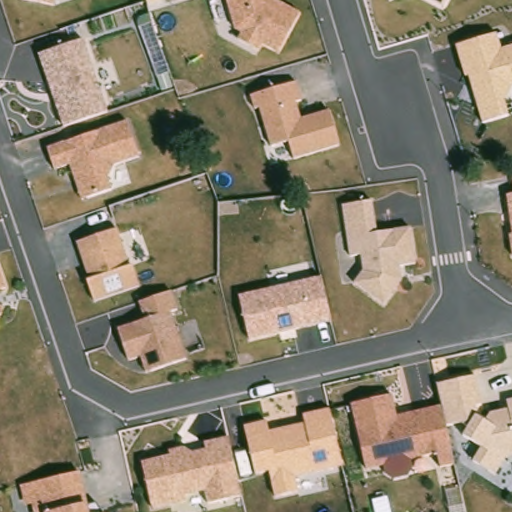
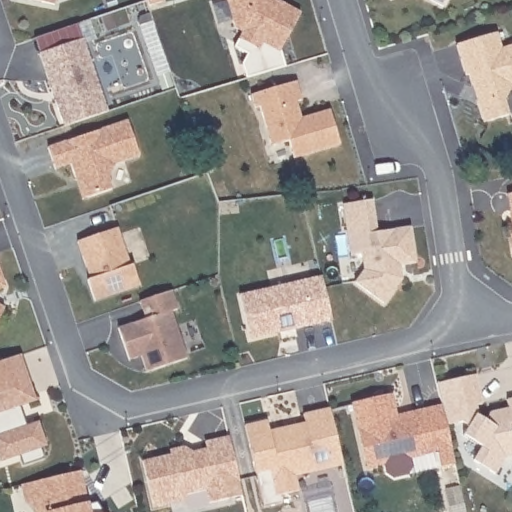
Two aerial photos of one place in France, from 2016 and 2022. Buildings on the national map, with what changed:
unchanged [(29,0),(55,0),(55,5),(29,0)]
unchanged [(279,53),(260,45),(257,50),(235,39),(238,32),(230,28),(223,0),(279,0),(301,11),(279,53)]
unchanged [(425,0),(448,0),(443,9),(425,0)]
unchanged [(496,33),(500,49),(512,45),(512,87),(504,99),(508,115),(482,124),(469,76),(462,77),(455,45),(496,33)]
unchanged [(38,55),(82,40),(107,112),(64,129),(38,55)]
unchanged [(254,111),(249,95),(297,81),(303,101),(296,102),(301,118),(329,110),(339,145),(291,159),(287,142),(270,147),(260,108),(254,111)]
unchanged [(53,168),(45,147),(127,120),(140,157),(115,166),(107,179),(111,189),(80,199),(69,165),(53,168)]
unchanged [(512,179),(512,184),(511,179),(512,179)]
unchanged [(512,257),(511,257),(508,234),(511,231),(505,194),(512,193),(512,257)]
unchanged [(360,256),(350,258),(342,205),(371,201),(375,232),(411,226),(417,265),(404,267),(405,277),(383,307),(353,286),(363,268),(360,256)]
unchanged [(130,264),(132,263),(140,287),(94,302),(85,279),(87,278),(75,241),(116,227),(130,264)]
unchanged [(6,288),(0,290),(0,270),(6,288)]
unchanged [(330,323),(249,341),(240,295),(319,277),(330,323)]
unchanged [(177,311),(170,313),(186,358),(144,372),(139,357),(126,361),(115,327),(144,317),(138,300),(170,290),(177,311)]
unchanged [(4,307),(0,315),(0,306),(4,307)]
new [(25,355),(41,401),(25,406),(32,426),(43,422),(51,446),(46,447),(50,458),(27,466),(24,455),(5,462),(0,446),(0,363),(25,355)]
unchanged [(398,414),(441,405),(436,383),(477,375),(484,406),(478,407),(480,415),(486,417),(490,411),(507,408),(505,397),(512,396),(512,456),(505,457),(495,475),(470,460),(478,446),(460,436),(467,422),(447,427),(454,465),(436,468),(433,456),(407,460),(400,453),(390,455),(385,466),(365,470),(350,403),(393,393),(398,414)]
unchanged [(268,431),(304,422),(302,414),(330,408),(343,466),(295,476),(300,493),(275,498),(268,472),(255,475),(244,425),(265,420),(268,431)]
unchanged [(170,456),(169,449),(185,446),(192,450),(206,447),(205,442),(229,437),(242,496),(206,503),(204,492),(185,496),(185,501),(151,508),(141,462),(170,456)]
unchanged [(32,506),(24,507),(20,485),(80,471),(89,506),(96,504),(100,512),(33,512),(32,506)]

